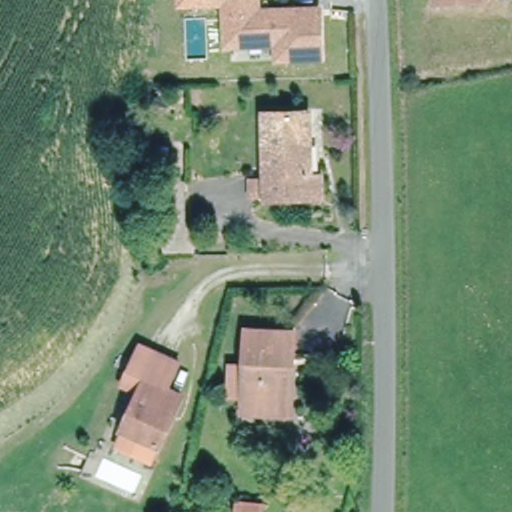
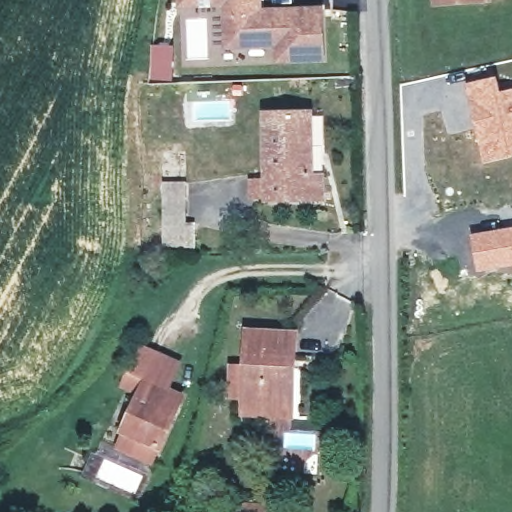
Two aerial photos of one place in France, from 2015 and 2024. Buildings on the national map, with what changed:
new [(177,0),(228,0),(228,6),(177,7),(177,0)]
unchanged [(325,5),(328,54),(284,57),(283,42),(230,46),(228,0),(261,0),(262,10),(325,5)]
new [(501,90),(512,88),(512,156),(484,162),(465,82),(497,75),(501,90)]
unchanged [(250,181),(265,180),(262,118),(306,116),(309,179),(318,179),(323,178),(325,198),(319,198),(265,199),(252,199),(250,181)]
unchanged [(165,197),(165,180),(186,180),(187,228),(194,228),(195,252),(167,253),(166,211),(160,211),(160,197),(165,197)]
new [(512,267),(476,272),(470,233),(512,226),(512,267)]
unchanged [(249,413),(249,402),(250,332),(297,334),(296,361),(287,360),(286,404),(286,415),(249,413)]
unchanged [(120,441),(127,425),(143,389),(126,382),(132,368),(144,341),(184,358),(173,384),(186,389),(166,441),(159,458),(120,441)]
unchanged [(233,503),(258,505),(258,512),(233,512),(233,503)]

